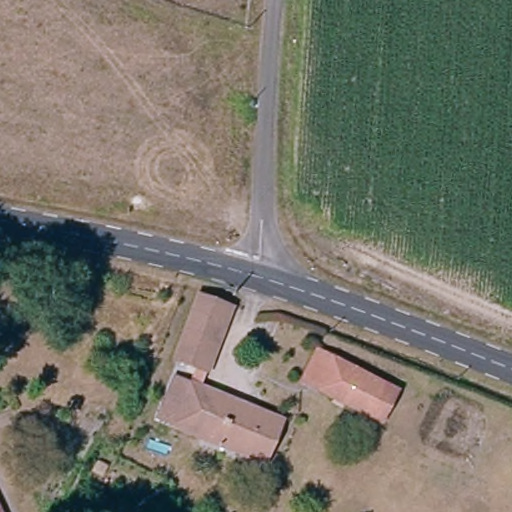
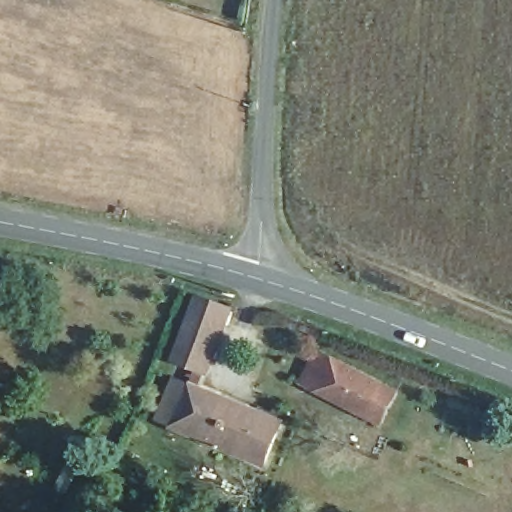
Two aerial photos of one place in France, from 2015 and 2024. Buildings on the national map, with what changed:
unchanged [(202,375),(169,363),(195,299),(226,313),(202,375)]
unchanged [(367,416),(317,390),(303,382),(320,351),(335,358),(383,383),(397,391),(381,423),(367,416)]
unchanged [(151,422),(169,382),(275,425),(259,464),(223,451),(151,422)]
unchanged [(0,500),(6,512),(0,512),(0,500)]

